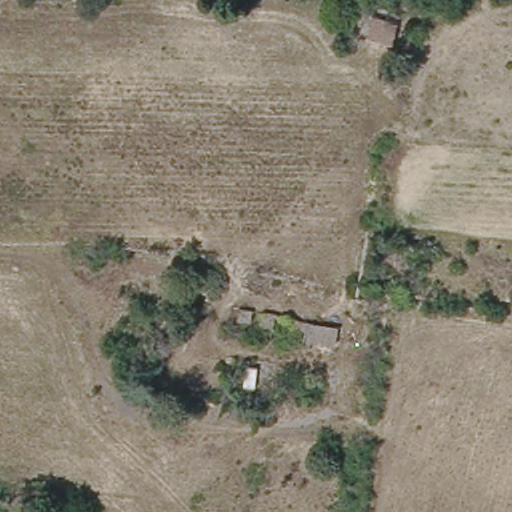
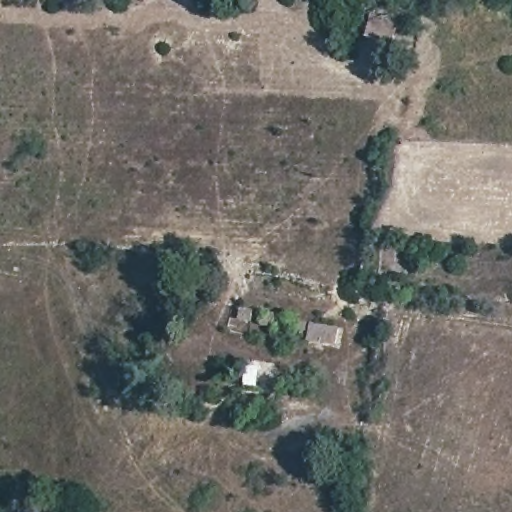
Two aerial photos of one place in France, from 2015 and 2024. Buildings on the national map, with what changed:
unchanged [(367,25),(401,26),(401,54),(362,48),(364,25),(367,25)]
unchanged [(338,332),(332,356),(228,333),(233,309),(338,332)]
unchanged [(259,395),(229,393),(230,367),(259,368),(259,395)]

